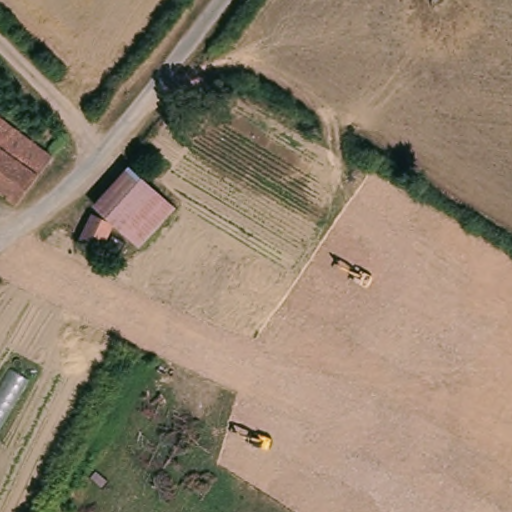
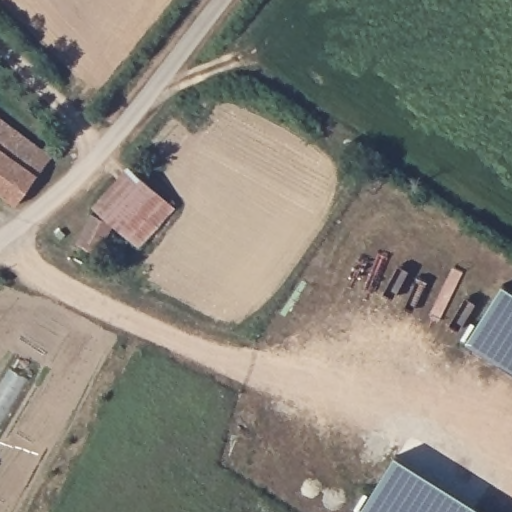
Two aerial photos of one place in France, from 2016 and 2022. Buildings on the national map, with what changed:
unchanged [(51,160),(13,208),(0,199),(0,123),(51,160)]
unchanged [(176,207),(141,249),(115,225),(100,250),(75,242),(93,202),(129,164),(176,207)]
new [(503,285),(512,290),(512,370),(467,342),(503,285)]
new [(396,456),(486,512),(360,512),(396,456)]

